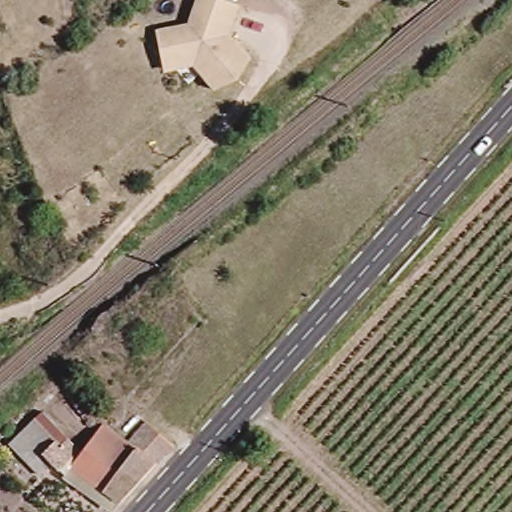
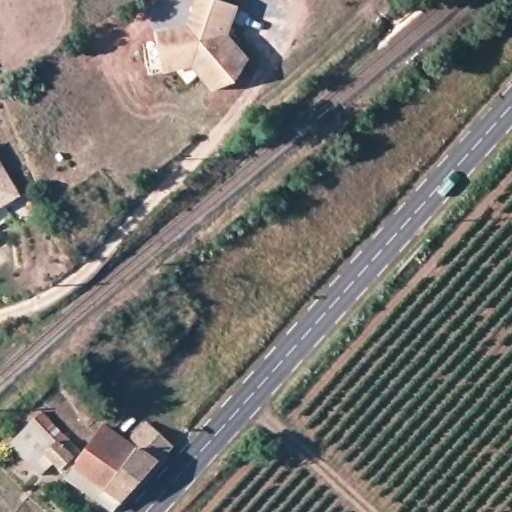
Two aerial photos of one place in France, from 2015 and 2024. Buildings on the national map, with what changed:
unchanged [(188,27),(200,0),(213,0),(239,12),(228,39),(248,64),(238,81),(215,92),(193,68),(162,75),(153,37),(188,27)]
new [(6,206),(11,218),(0,226),(0,165),(19,198),(6,206)]
unchanged [(74,491),(73,487),(76,485),(77,484),(52,463),(40,476),(10,447),(19,436),(32,420),(39,412),(80,450),(94,432),(103,422),(125,442),(146,422),(169,443),(111,506),(84,487),(78,492),(74,491)]

